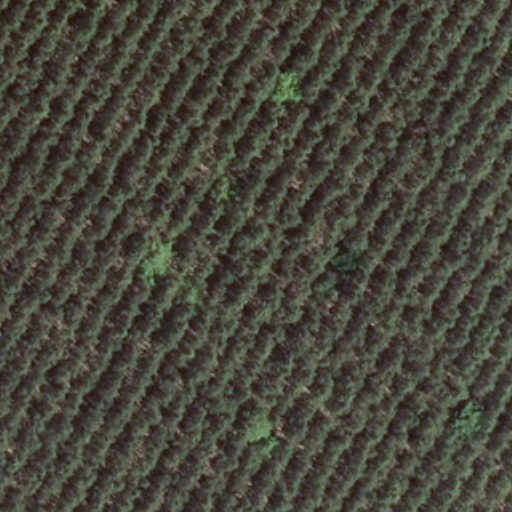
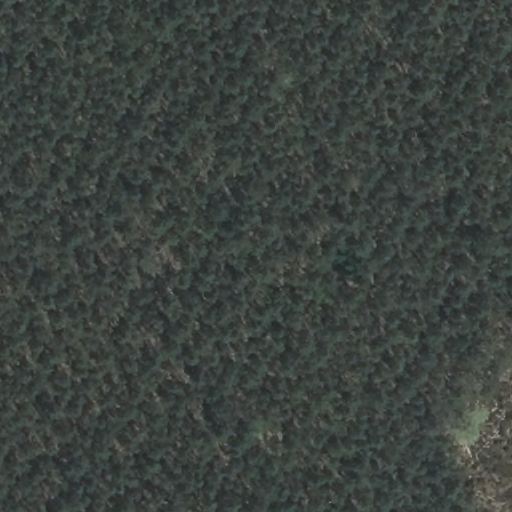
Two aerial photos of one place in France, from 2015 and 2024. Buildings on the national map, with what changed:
[]

